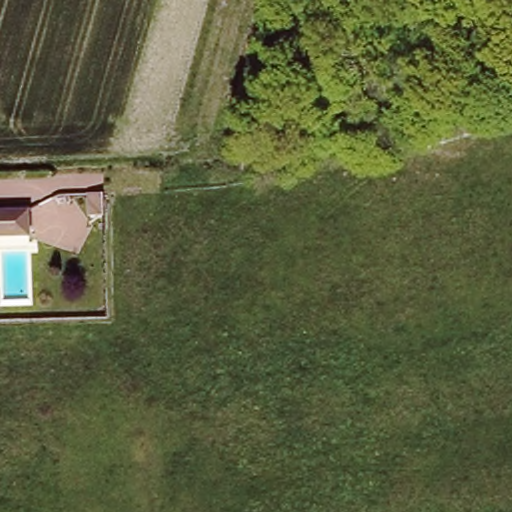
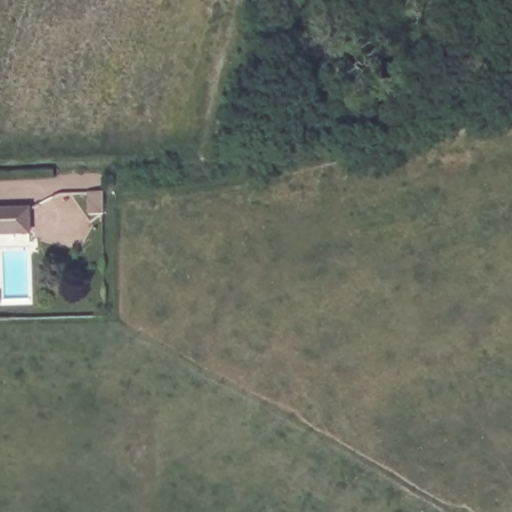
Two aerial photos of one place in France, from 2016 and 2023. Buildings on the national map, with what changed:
unchanged [(103,214),(88,215),(87,191),(102,190),(103,214)]
unchanged [(27,228),(0,229),(0,205),(26,204),(27,228)]

